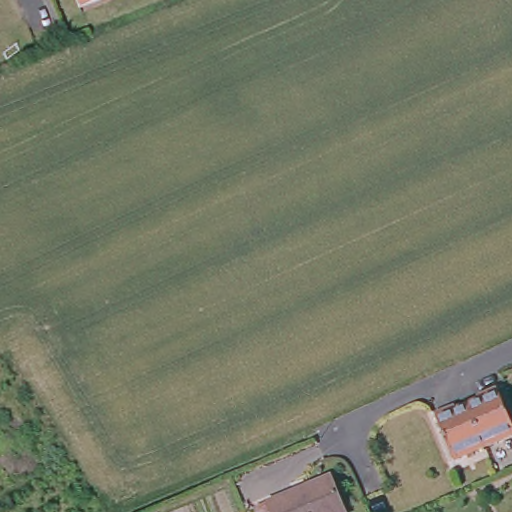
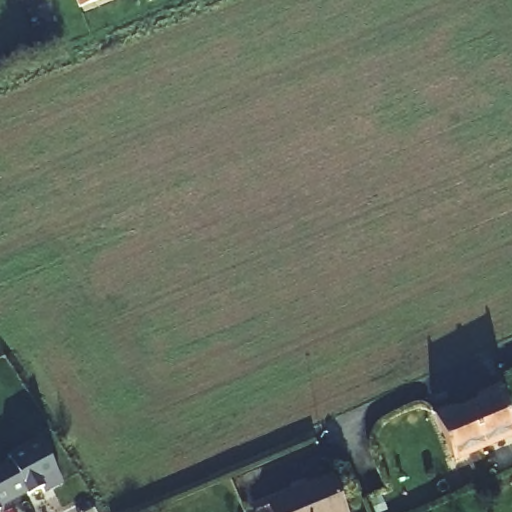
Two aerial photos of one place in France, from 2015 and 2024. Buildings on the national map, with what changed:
unchanged [(77,10),(73,0),(101,0),(77,10)]
unchanged [(456,415),(469,409),(481,404),(479,399),(497,392),(512,428),(512,442),(487,452),(456,465),(435,419),(454,411),(456,415)]
new [(11,462),(8,457),(39,440),(62,483),(42,493),(40,489),(29,496),(27,492),(0,506),(0,467),(11,462)]
unchanged [(303,497),(313,493),(312,490),(331,481),(344,512),(269,512),(272,511),(270,507),(301,494),(303,497)]

